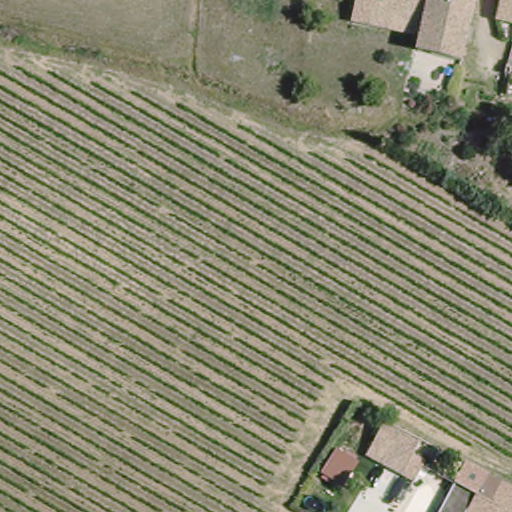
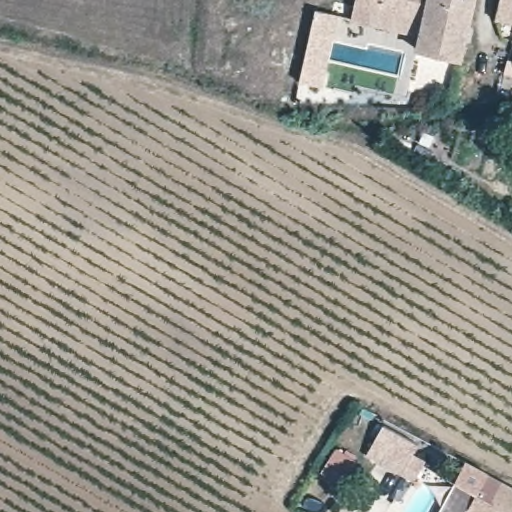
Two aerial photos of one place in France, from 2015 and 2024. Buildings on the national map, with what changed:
unchanged [(405,34),(352,23),(357,0),(413,0),(405,34)]
unchanged [(449,56),(402,46),(413,0),(462,0),(449,56)]
unchanged [(502,0),(512,0),(512,21),(498,18),(502,0)]
new [(315,10),(338,15),(322,89),(298,84),(315,10)]
unchanged [(508,80),(505,93),(493,89),(497,75),(508,80)]
unchanged [(428,451),(415,478),(371,456),(384,428),(428,451)]
unchanged [(453,484),(465,463),(487,474),(512,488),(512,512),(466,512),(475,496),(453,484)]

